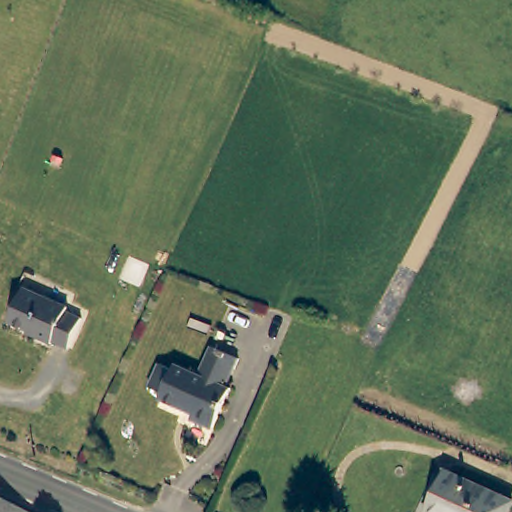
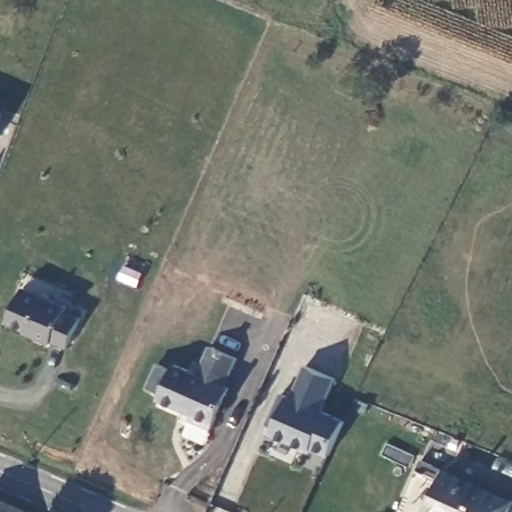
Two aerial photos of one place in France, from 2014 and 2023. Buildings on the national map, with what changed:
new [(0,109),(3,110),(0,118),(0,109)]
unchanged [(83,319),(70,350),(55,344),(54,346),(36,339),(38,337),(10,326),(24,291),(69,308),(66,312),(83,319)]
unchanged [(177,364),(199,375),(212,348),(239,361),(227,388),(232,390),(213,429),(192,419),(194,414),(160,398),(163,391),(150,385),(160,362),(175,369),(177,364)]
new [(322,410),(346,421),(329,456),(315,449),(314,451),(276,432),(279,427),(269,424),(283,393),(290,395),(294,397),(306,365),(335,378),(322,410)]
unchanged [(448,472),(512,499),(512,508),(511,512),(432,512),(448,472)]
unchanged [(0,503),(22,512),(0,512),(0,503)]

